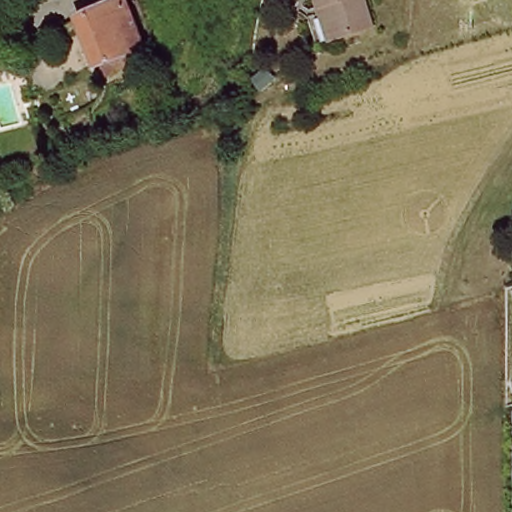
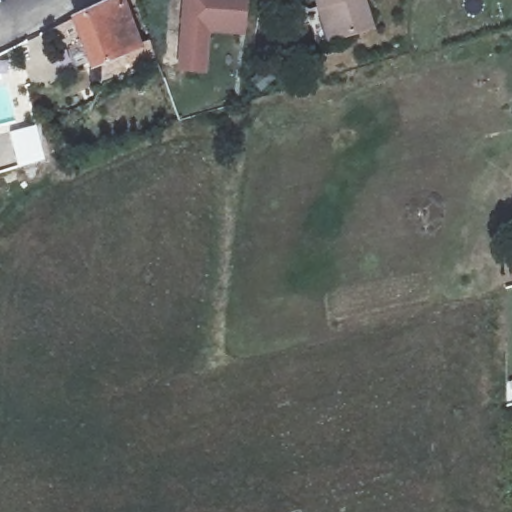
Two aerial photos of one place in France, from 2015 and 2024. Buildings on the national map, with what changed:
unchanged [(135,52),(129,55),(130,60),(99,74),(72,17),(97,8),(97,3),(104,0),(119,0),(137,45),(133,48),(135,52)]
new [(248,5),(245,32),(207,28),(203,70),(177,67),(185,0),(249,0),(248,5)]
unchanged [(319,11),(316,0),(367,0),(376,29),(342,40),(328,45),(319,11)]

